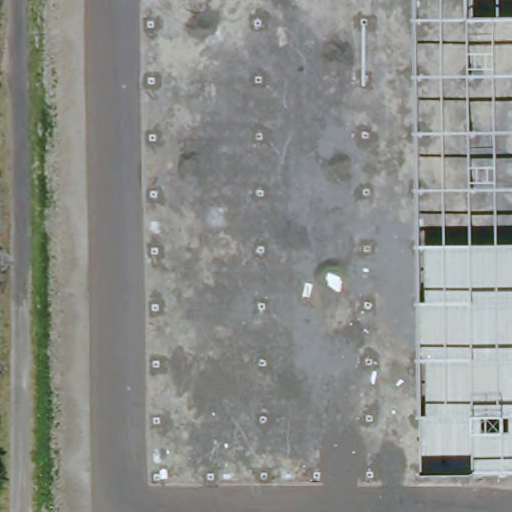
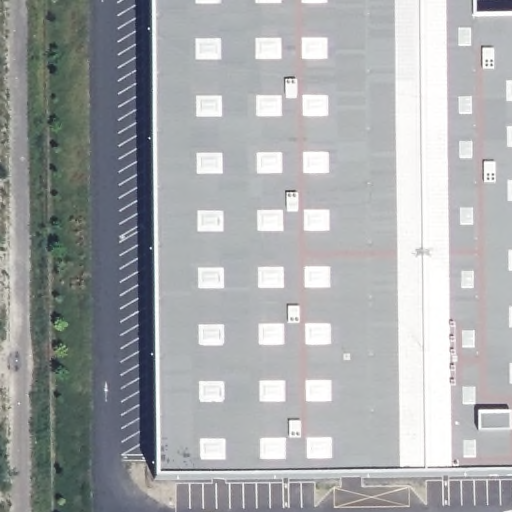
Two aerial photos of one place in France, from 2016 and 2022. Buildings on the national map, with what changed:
new [(149,0),(416,0),(420,475),(156,479),(149,0)]
unchanged [(416,0),(512,0),(512,474),(420,475),(416,0)]

